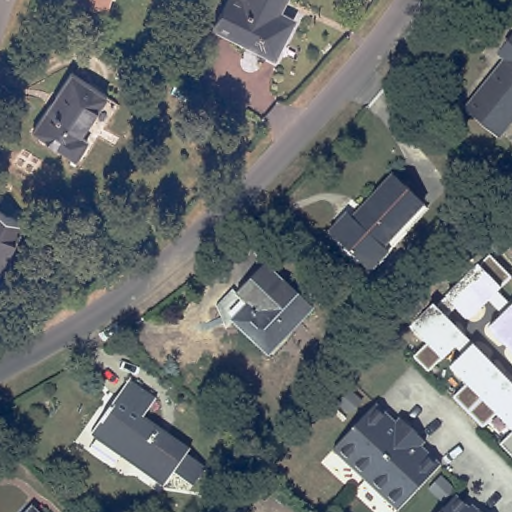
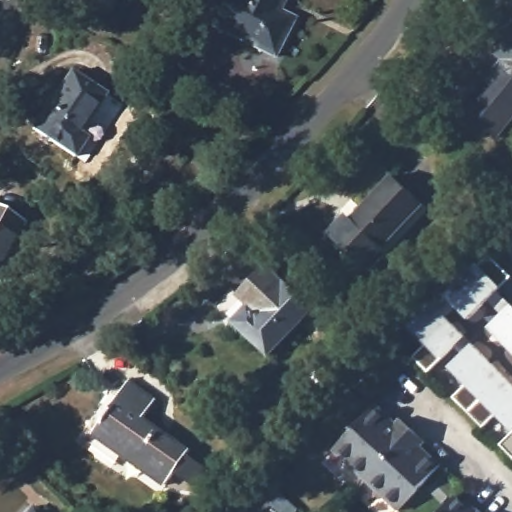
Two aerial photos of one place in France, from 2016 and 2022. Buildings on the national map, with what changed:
unchanged [(226,0),(284,0),(278,12),(292,20),(273,57),(213,27),(226,0)]
unchanged [(498,56),(512,38),(512,123),(499,139),(464,111),(504,60),(498,56)]
unchanged [(34,130),(70,74),(104,96),(79,134),(86,140),(75,157),(34,130)]
unchanged [(384,252),(386,255),(369,272),(328,234),(345,216),(350,220),(391,176),(422,205),(426,208),(384,252)]
unchanged [(28,227),(0,280),(0,213),(28,227)]
unchanged [(512,249),(500,237),(512,226),(512,249)]
unchanged [(490,254),(511,277),(468,317),(446,296),(490,254)]
unchanged [(270,268),(316,313),(272,360),(236,326),(250,311),(239,300),(270,268)]
unchanged [(412,358),(426,344),(409,327),(430,305),(463,337),(427,373),(412,358)]
unchanged [(512,307),(512,352),(488,327),(510,306),(512,307)]
unchanged [(482,428),(452,398),(466,384),(449,367),(471,345),(512,386),(512,429),(496,413),(482,428)]
unchanged [(172,474),(164,484),(120,453),(119,454),(90,433),(126,381),(154,400),(142,417),(188,451),(184,456),(200,467),(187,484),(172,474)]
unchanged [(369,401),(385,416),(380,420),(385,425),(394,415),(418,438),(410,448),(415,452),(419,447),(434,462),(392,507),(327,447),(369,401)]
unchanged [(503,448),(499,445),(512,432),(512,458),(505,452),(503,448)]
unchanged [(465,507),(470,512),(440,512),(454,497),(465,507)]
unchanged [(34,512),(28,512),(30,509),(34,512)]
unchanged [(479,512),(477,512),(478,511),(479,512)]

